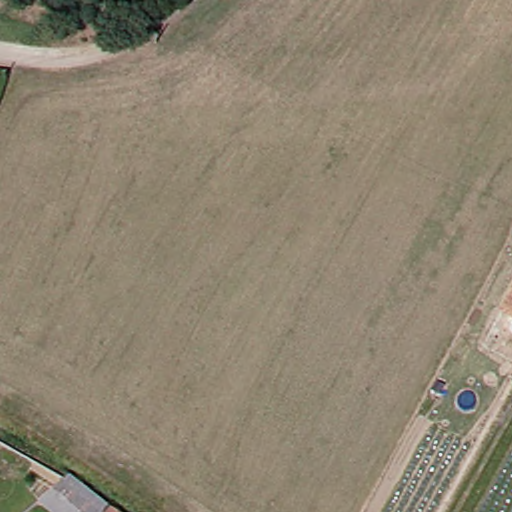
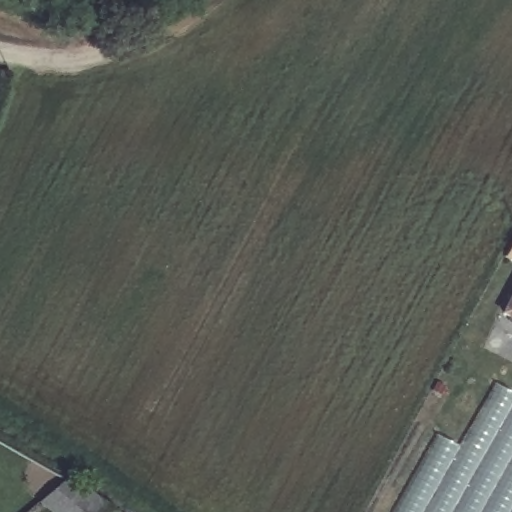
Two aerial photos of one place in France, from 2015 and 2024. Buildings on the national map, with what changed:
new [(512,241),(512,265),(502,259),(512,241)]
unchanged [(505,313),(512,299),(512,317),(505,313)]
new [(397,512),(440,433),(462,445),(497,383),(512,392),(512,512),(397,512)]
unchanged [(52,512),(34,499),(64,474),(100,498),(113,507),(109,512),(52,512)]
unchanged [(119,512),(109,512),(113,507),(119,512)]

